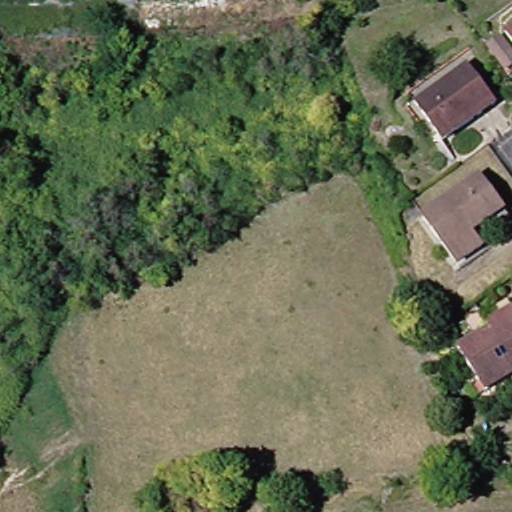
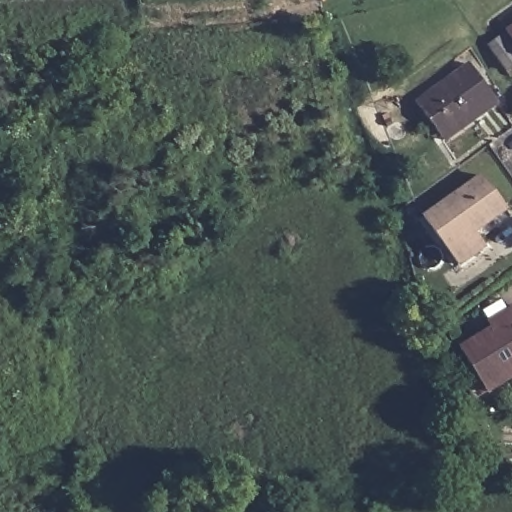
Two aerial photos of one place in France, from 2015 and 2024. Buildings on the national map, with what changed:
unchanged [(497,48),(508,40),(512,45),(512,69),(497,48)]
unchanged [(510,100),(457,141),(427,101),(480,62),(510,100)]
unchanged [(512,207),(512,218),(485,239),(490,246),(466,264),(430,215),(487,174),(512,207)]
unchanged [(496,390),(467,346),(512,318),(512,380),(496,390)]

